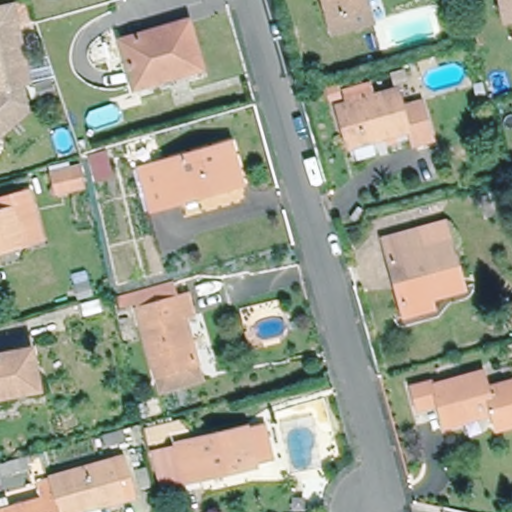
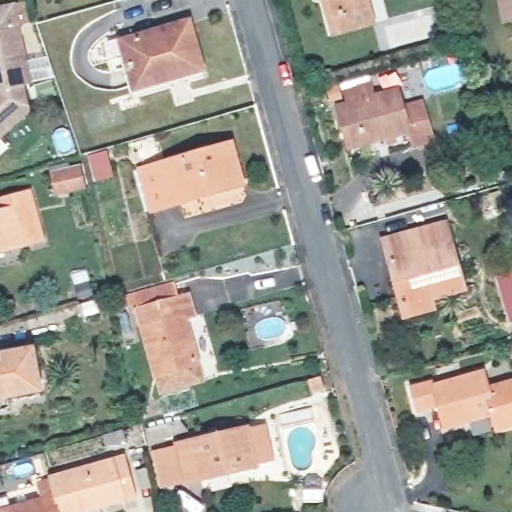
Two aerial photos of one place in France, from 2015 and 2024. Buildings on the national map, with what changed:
unchanged [(319,0),(360,0),(363,8),(324,19),(319,0)]
unchanged [(504,17),(501,0),(512,0),(512,16),(504,17)]
unchanged [(21,84),(26,114),(0,136),(0,5),(11,3),(30,83),(21,84)]
unchanged [(134,80),(121,38),(189,19),(203,65),(135,85),(134,80)]
unchanged [(391,92),(397,110),(416,104),(427,144),(409,148),(404,132),(344,150),(332,109),(391,92)]
unchanged [(141,164),(155,160),(230,139),(241,181),(167,202),(166,200),(151,204),(141,164)]
unchanged [(30,246),(0,254),(0,203),(18,199),(30,246)]
unchanged [(400,319),(397,308),(378,242),(410,233),(416,253),(445,245),(457,291),(425,300),(428,310),(400,319)]
new [(509,323),(496,276),(512,271),(512,321),(509,323)]
unchanged [(139,306),(190,292),(195,312),(187,314),(199,358),(156,370),(139,306)]
unchanged [(39,387),(0,394),(0,352),(30,346),(39,387)]
unchanged [(409,382),(429,376),(431,383),(483,369),(487,384),(494,409),(483,412),(444,422),(440,404),(417,410),(409,382)]
unchanged [(494,409),(487,384),(512,375),(512,427),(489,434),(483,412),(494,409)]
unchanged [(246,423),(256,460),(186,479),(176,441),(246,423)]
unchanged [(38,480),(125,455),(136,493),(70,512),(0,512),(0,509),(43,497),(38,480)]

